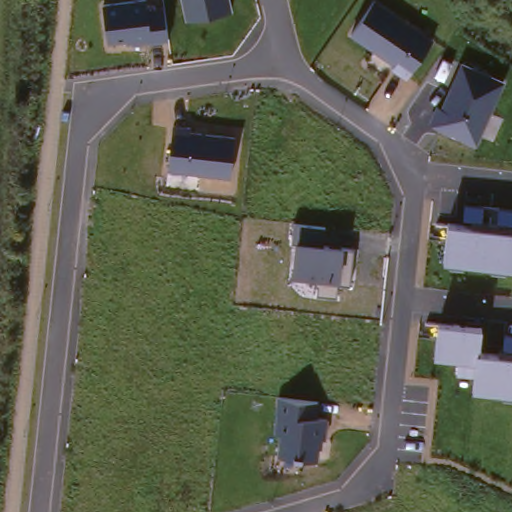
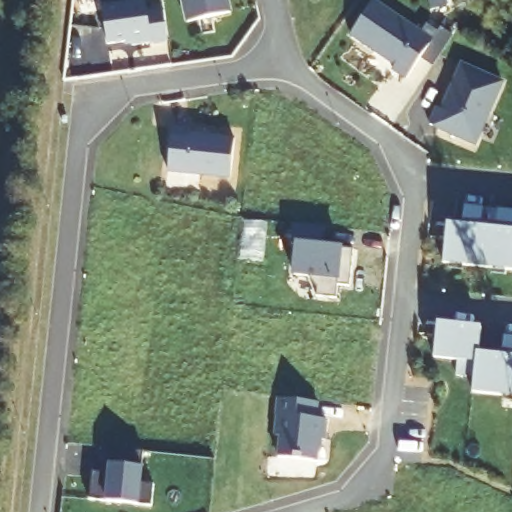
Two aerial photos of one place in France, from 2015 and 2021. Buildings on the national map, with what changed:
unchanged [(125,45),(124,39),(106,42),(101,7),(146,0),(148,10),(163,7),(169,37),(125,45)]
unchanged [(179,0),(226,0),(229,14),(184,22),(179,0)]
unchanged [(351,36),(374,0),(375,0),(433,36),(409,74),(351,36)]
unchanged [(476,143),(435,125),(461,63),(504,81),(476,143)]
unchanged [(229,177),(166,170),(170,130),(235,136),(229,177)]
unchanged [(350,283),(336,282),(335,295),(316,294),(316,284),(313,280),(290,277),(294,242),(289,241),(291,219),(324,225),(322,245),(353,248),(350,283)]
unchanged [(442,262),(446,226),(512,233),(512,270),(442,262)]
unchanged [(472,392),(475,362),(434,357),(437,324),(483,328),(479,352),(503,355),(506,335),(512,335),(512,397),(472,392)]
unchanged [(316,417),(328,417),(325,439),(319,439),(316,460),(276,455),(279,434),(274,433),(278,396),(318,400),(316,417)]
new [(91,466),(109,468),(109,460),(99,458),(101,441),(143,446),(139,478),(153,480),(151,501),(88,495),(91,466)]

